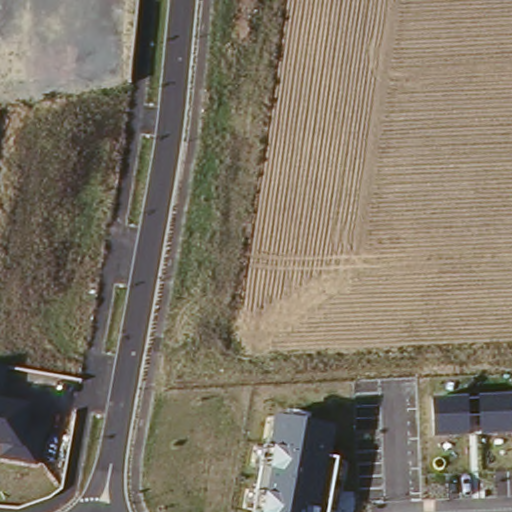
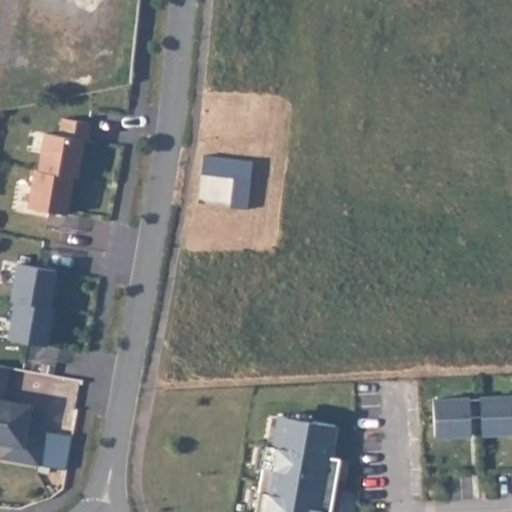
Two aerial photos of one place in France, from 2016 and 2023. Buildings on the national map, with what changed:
new [(85,126),(82,145),(79,145),(74,181),(69,181),(62,218),(25,211),(31,174),(36,175),(42,138),(57,140),(60,123),(85,126)]
new [(50,275),(45,312),(49,313),(42,350),(5,344),(11,307),(8,307),(14,270),(50,275)]
unchanged [(8,397),(54,407),(40,465),(0,458),(0,367),(12,370),(8,397)]
unchanged [(482,435),(482,416),(467,418),(470,436),(434,437),(434,398),(512,394),(512,433),(482,435)]
unchanged [(271,446),(276,416),(334,423),(328,456),(337,458),(329,512),(254,512),(265,445),(271,446)]

